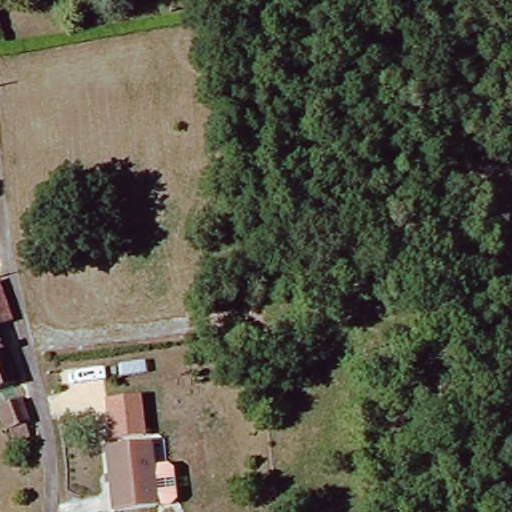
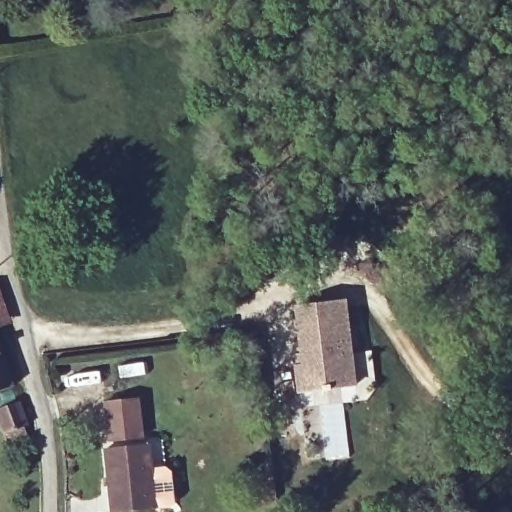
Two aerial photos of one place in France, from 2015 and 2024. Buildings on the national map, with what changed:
unchanged [(1,281),(15,332),(0,337),(0,281),(1,281)]
new [(358,386),(297,394),(293,364),(301,363),(294,305),(348,298),(358,386)]
unchanged [(0,390),(0,337),(15,385),(0,390)]
unchanged [(144,437),(110,441),(106,400),(141,397),(144,437)]
unchanged [(14,438),(10,426),(4,429),(0,414),(0,412),(23,404),(32,431),(14,438)]
unchanged [(118,512),(111,451),(153,446),(160,511),(149,512),(118,512)]

